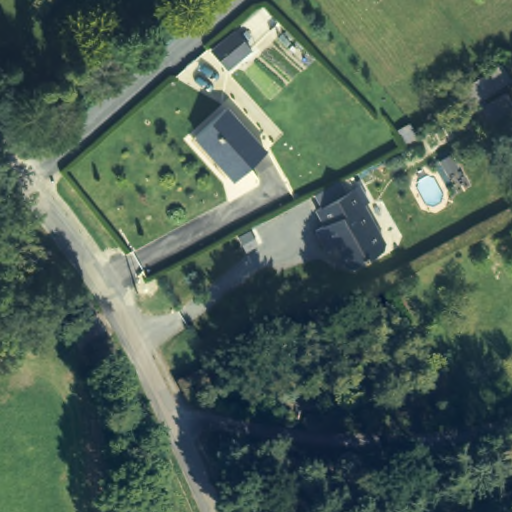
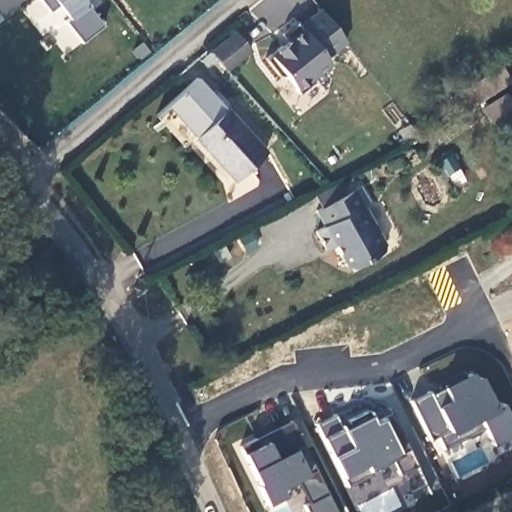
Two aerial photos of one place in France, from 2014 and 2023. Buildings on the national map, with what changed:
new [(103,25),(81,41),(68,20),(59,8),(51,13),(42,0),(83,0),(86,5),(103,25)]
new [(328,60),(333,66),(294,95),(264,56),(285,39),(281,31),(295,21),(299,26),(320,7),(347,42),(328,60)]
unchanged [(244,48),(219,68),(206,50),(231,31),(244,48)]
unchanged [(507,79),(456,113),(445,98),(497,62),(507,79)]
unchanged [(502,91),(510,106),(487,122),(480,107),(502,91)]
unchanged [(234,177),(193,136),(224,108),(264,150),(234,177)]
unchanged [(359,187),(368,205),(366,206),(386,249),(351,269),(343,266),(334,247),(326,251),(316,230),(323,225),(315,208),(359,187)]
new [(439,442),(432,445),(412,405),(432,396),(434,398),(446,392),(444,390),(467,379),(469,382),(476,378),(479,385),(484,382),(498,411),(505,408),(512,422),(512,442),(494,450),(487,434),(462,446),(445,454),(439,442)]
new [(344,433),(352,429),(350,426),(371,415),(372,417),(392,415),(394,418),(420,471),(401,481),(393,464),(371,475),(373,479),(348,491),(318,429),(337,419),(344,433)]
new [(293,425),(294,426),(336,512),(306,512),(305,510),(309,508),(298,484),(282,492),(286,500),(267,509),(258,490),(260,490),(241,451),(258,443),(293,425)]

